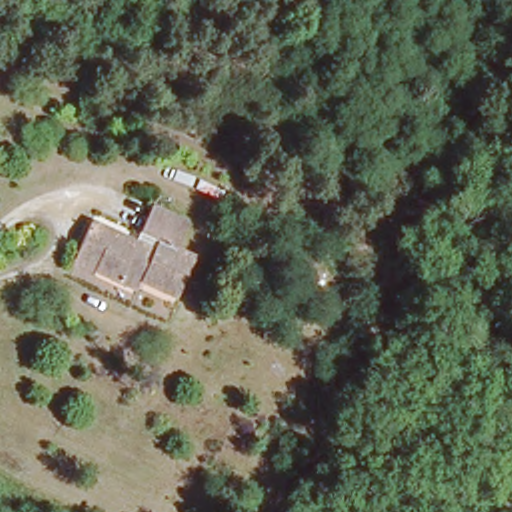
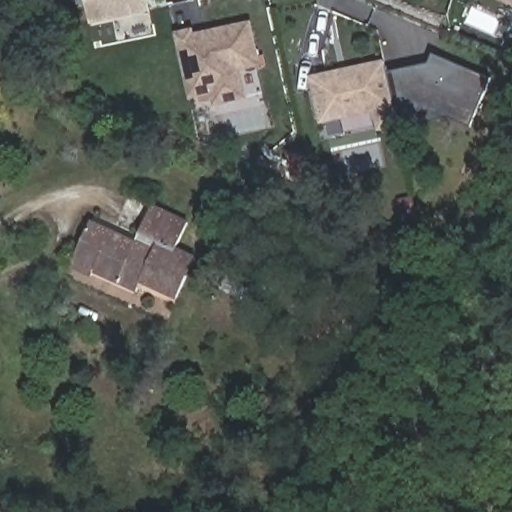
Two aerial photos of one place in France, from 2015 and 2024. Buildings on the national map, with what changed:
new [(85,0),(147,0),(149,12),(90,24),(85,0)]
new [(512,0),(512,4),(501,0),(512,0)]
new [(241,71),(246,100),(213,106),(211,95),(189,100),(174,32),(193,28),(194,32),(251,20),(260,67),(241,71)]
new [(470,127),(442,117),(398,127),(378,131),(373,112),(319,124),(309,76),(384,60),(387,72),(430,64),(433,54),(489,77),(470,127)]
unchanged [(122,271),(96,258),(93,263),(74,253),(79,242),(94,211),(137,230),(156,192),(192,210),(179,235),(198,245),(179,286),(144,270),(140,279),(122,271)]

